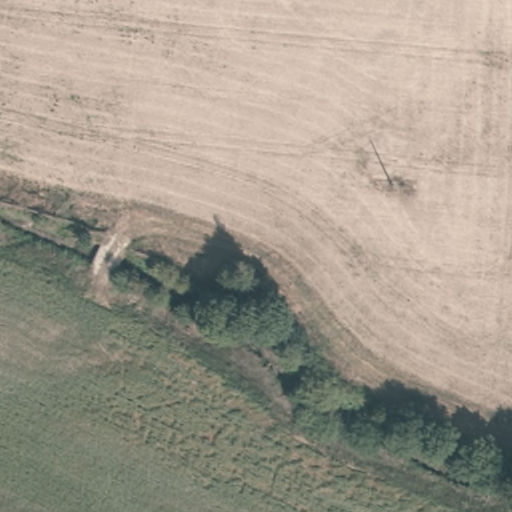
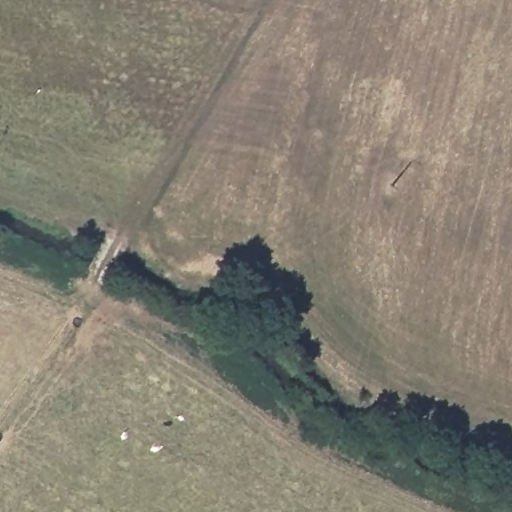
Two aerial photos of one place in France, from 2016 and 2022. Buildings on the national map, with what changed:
[]

